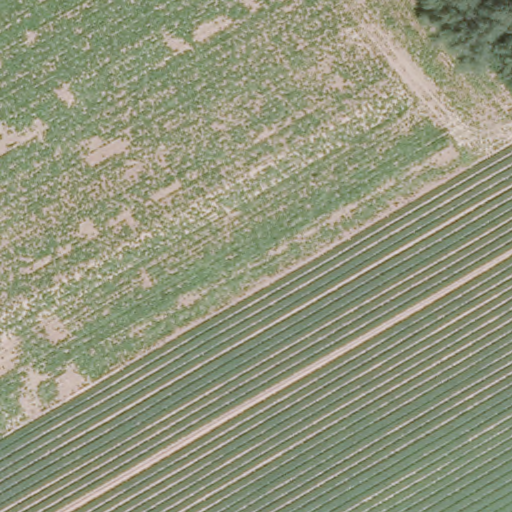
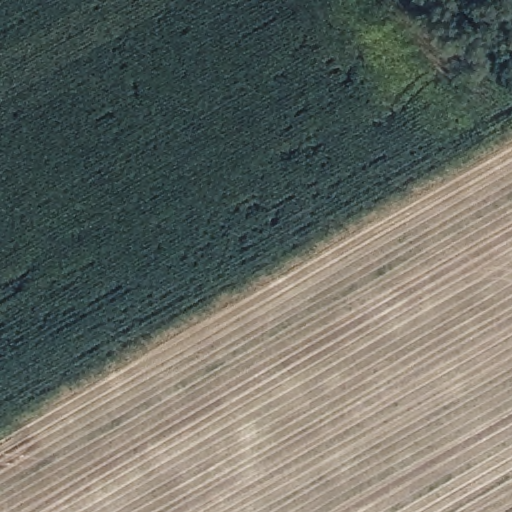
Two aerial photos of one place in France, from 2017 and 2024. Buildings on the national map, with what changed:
[]

